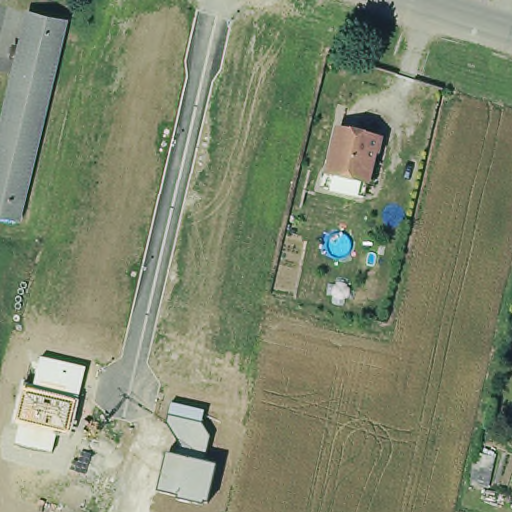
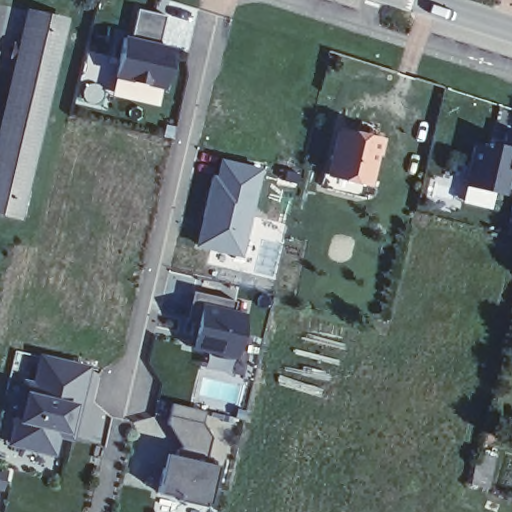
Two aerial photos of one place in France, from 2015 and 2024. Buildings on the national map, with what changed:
unchanged [(15,209),(0,205),(0,102),(12,47),(0,44),(4,34),(14,36),(22,3),(61,14),(15,209)]
new [(163,89),(114,79),(123,35),(130,37),(136,9),(165,15),(160,44),(173,46),(163,89)]
unchanged [(336,120),(375,129),(364,174),(325,165),(336,120)]
new [(462,185),(471,144),(487,147),(488,142),(500,144),(502,135),(512,137),(512,169),(509,169),(503,194),(462,185)]
new [(260,171),(242,259),(194,249),(212,175),(215,177),(219,159),(260,171)]
new [(190,348),(197,324),(185,321),(192,291),(235,300),(233,311),(247,314),(237,359),(190,348)]
unchanged [(70,436),(57,433),(52,453),(16,446),(26,388),(33,389),(41,358),(86,368),(70,436)]
unchanged [(205,411),(202,423),(210,438),(205,463),(217,466),(208,504),(203,504),(202,506),(177,500),(177,497),(157,492),(167,454),(182,458),(183,448),(167,423),(171,404),(205,411)]

